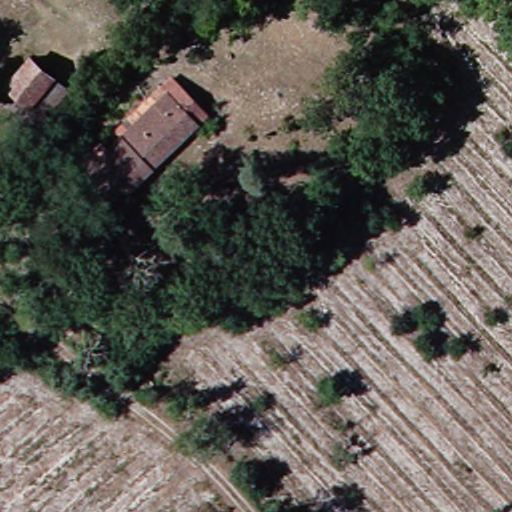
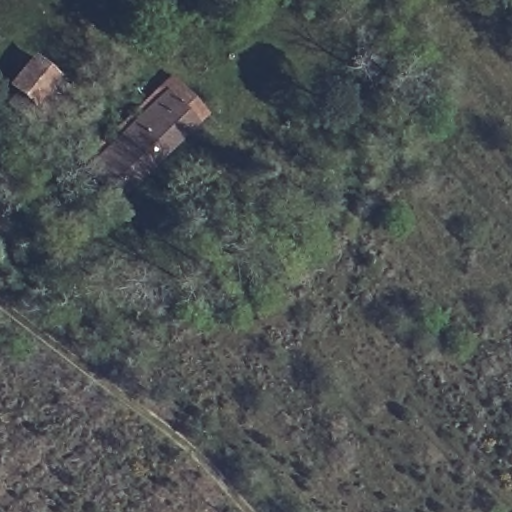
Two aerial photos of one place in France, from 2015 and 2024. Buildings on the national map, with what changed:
unchanged [(30,115),(4,91),(28,65),(54,93),(30,115)]
unchanged [(66,174),(177,70),(195,88),(208,103),(173,138),(100,207),(66,174)]

